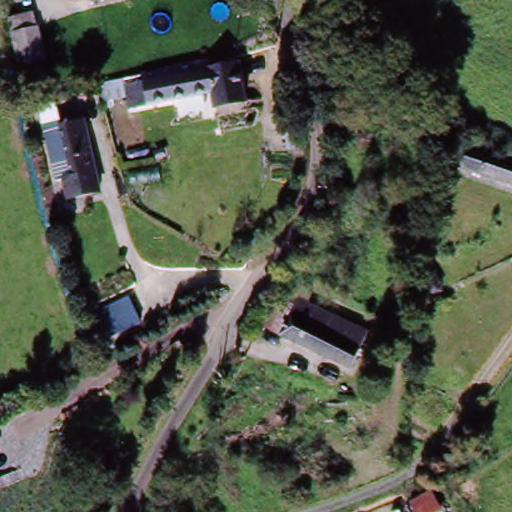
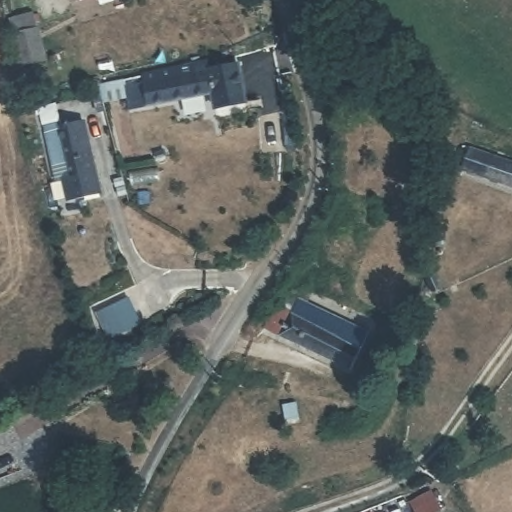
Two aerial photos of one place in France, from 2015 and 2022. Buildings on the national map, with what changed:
unchanged [(71,0),(76,0),(72,1),(71,0)]
unchanged [(19,59),(8,15),(30,10),(41,53),(19,59)]
unchanged [(204,72),(237,65),(244,102),(214,109),(212,95),(129,115),(121,86),(203,65),(204,72)]
unchanged [(81,125),(104,194),(74,205),(67,185),(59,187),(40,131),(35,115),(51,110),(56,126),(58,132),(81,125)]
unchanged [(472,157),(478,140),(512,153),(512,185),(477,173),(479,160),(472,157)]
unchanged [(275,326),(292,300),(302,305),(306,295),(372,331),(349,371),(275,326)]
unchanged [(469,481),(459,487),(448,465),(459,460),(469,481)]

